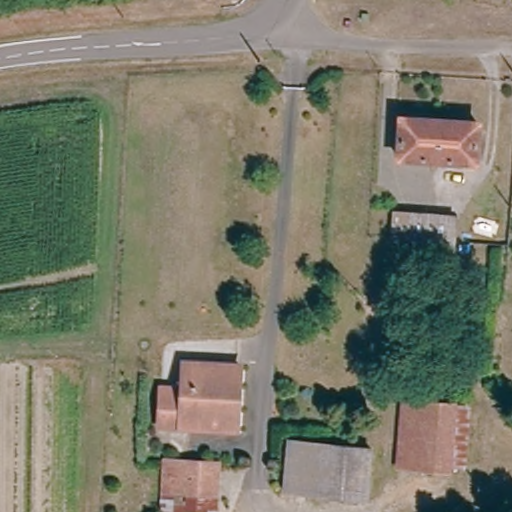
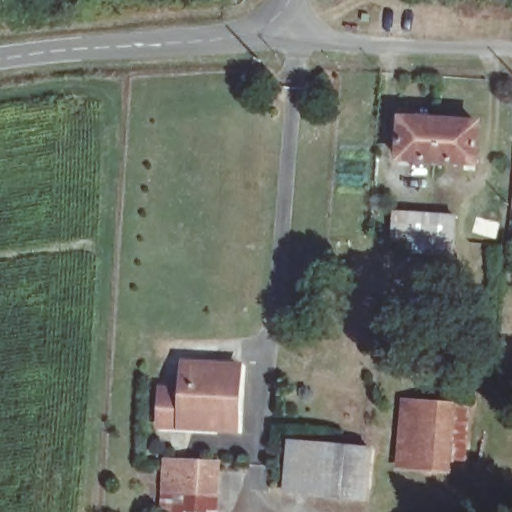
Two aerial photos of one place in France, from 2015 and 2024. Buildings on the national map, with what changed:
unchanged [(396,117),(472,124),(469,166),(393,158),(396,117)]
unchanged [(448,220),(446,255),(420,253),(421,242),(386,240),(389,215),(448,220)]
unchanged [(157,390),(181,392),(182,366),(237,368),(233,432),(179,429),(156,427),(157,390)]
unchanged [(394,468),(397,402),(447,405),(461,406),(459,466),(444,465),(443,472),(394,468)]
unchanged [(282,445),(366,449),(362,500),(278,495),(282,445)]
unchanged [(214,463),(213,511),(179,511),(179,512),(160,512),(161,461),(214,463)]
unchanged [(446,512),(413,512),(413,507),(446,510),(446,512)]

